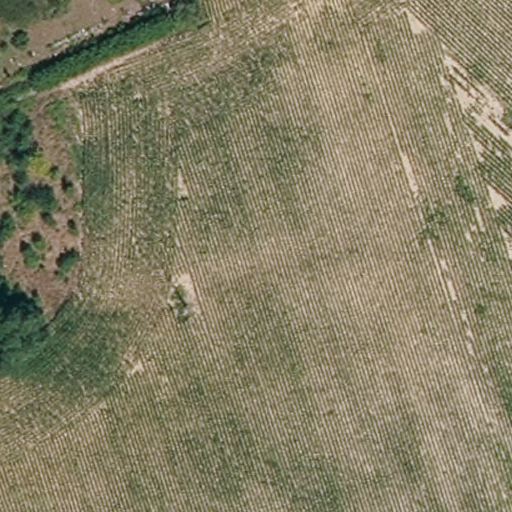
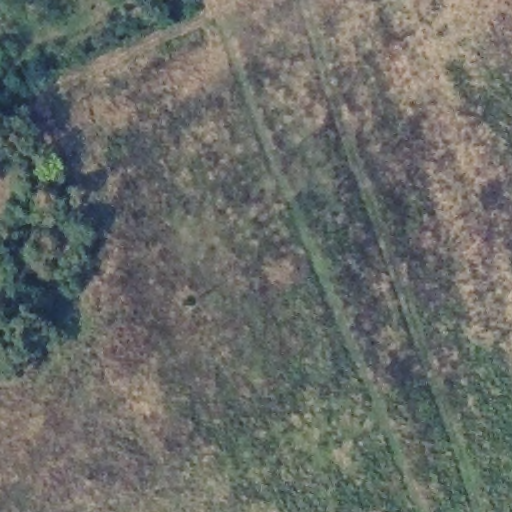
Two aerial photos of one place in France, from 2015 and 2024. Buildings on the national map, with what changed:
unchanged [(30,325),(9,328),(6,312),(27,309),(30,325)]

